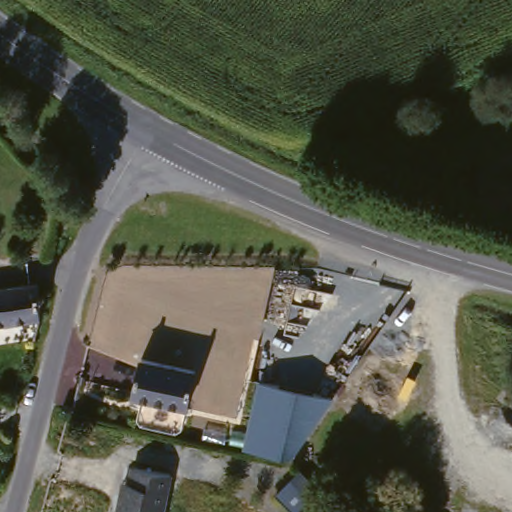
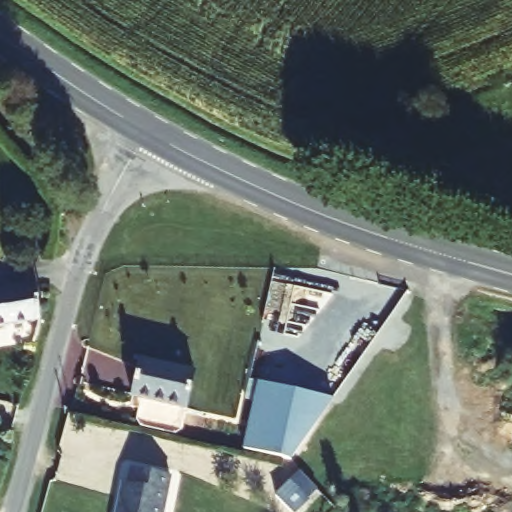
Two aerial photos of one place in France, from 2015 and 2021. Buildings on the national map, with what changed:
unchanged [(0,327),(0,291),(31,288),(35,324),(0,327)]
unchanged [(199,370),(192,409),(138,397),(146,357),(199,370)]
unchanged [(340,392),(296,460),(248,448),(268,376),(340,392)]
unchanged [(130,462),(168,468),(161,512),(112,512),(117,482),(126,482),(130,462)]
unchanged [(294,476),(310,493),(293,508),(277,491),(294,476)]

